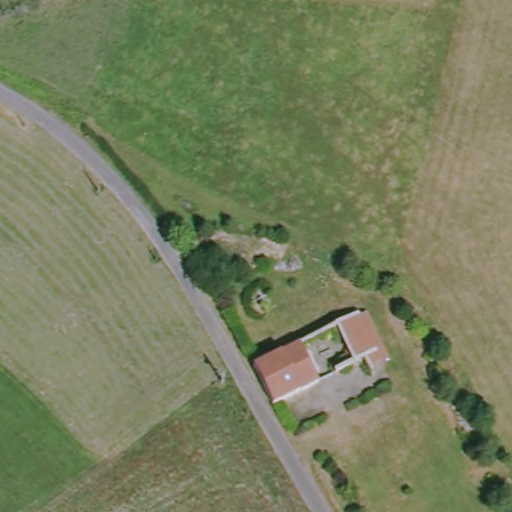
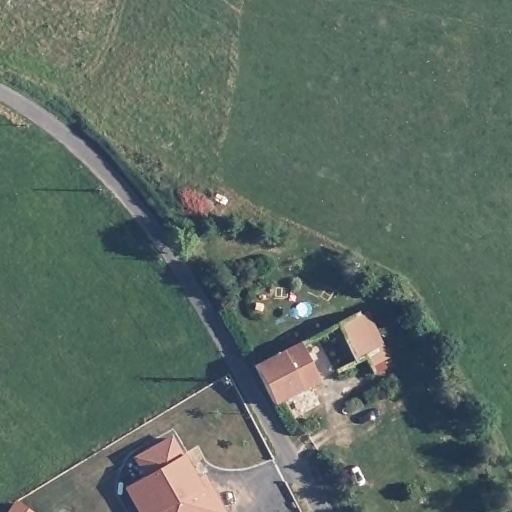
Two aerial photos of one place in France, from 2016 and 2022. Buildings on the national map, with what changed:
unchanged [(363,317),(381,352),(375,356),(354,367),(335,332),(356,320),(363,317)]
unchanged [(296,346),(315,380),(270,404),(251,370),(296,346)]
new [(143,477),(133,458),(171,436),(183,456),(197,478),(203,474),(223,512),(137,512),(123,488),(143,477)]

